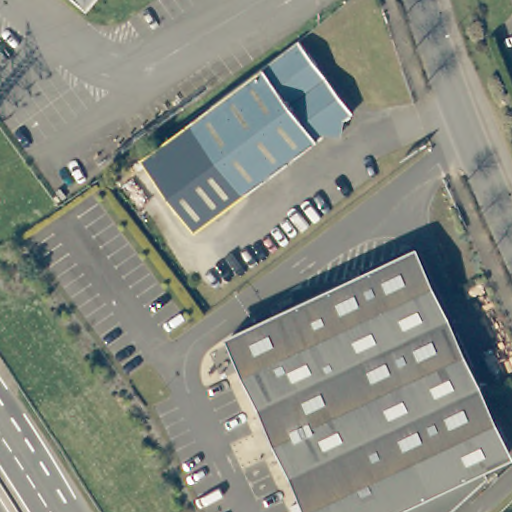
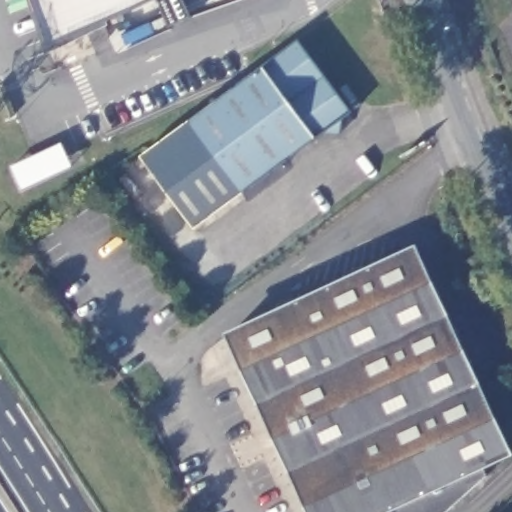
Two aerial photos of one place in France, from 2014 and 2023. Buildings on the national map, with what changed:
new [(33,0),(158,0),(52,49),(33,0)]
demolished [(79,0),(94,0),(87,8),(79,0)]
unchanged [(251,74),(297,39),(350,114),(340,123),(340,135),(325,131),(304,148),(251,74)]
unchanged [(195,229),(140,156),(251,74),(304,148),(195,229)]
unchanged [(224,343),(255,329),(379,274),(403,263),(495,470),(401,512),(301,512),(278,460),(275,462),(271,454),(263,434),(265,434),(251,402),(228,350),(224,343)]

